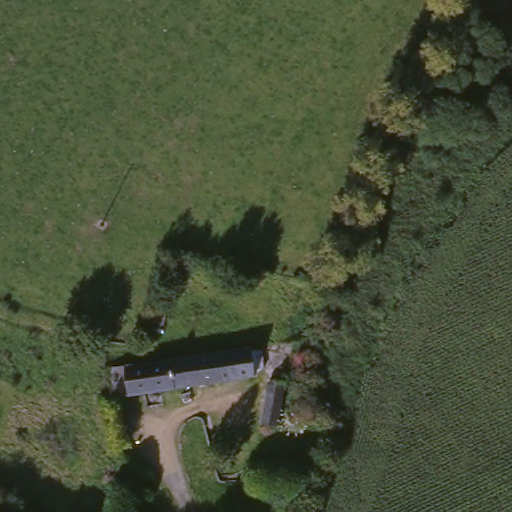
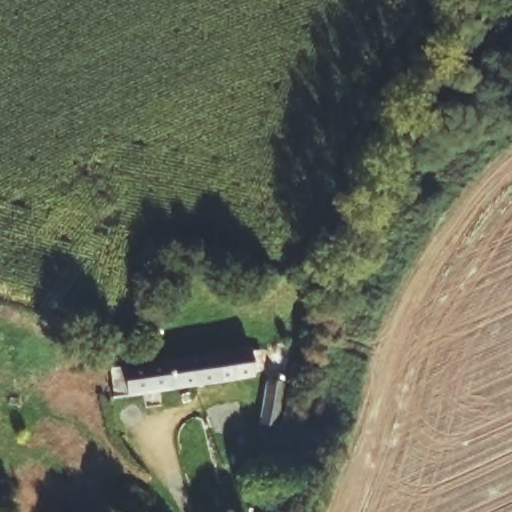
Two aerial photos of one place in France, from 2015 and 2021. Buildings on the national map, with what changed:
unchanged [(150,323),(161,267),(174,270),(162,325),(150,323)]
unchanged [(116,397),(112,369),(251,348),(251,352),(260,351),(263,371),(255,375),(255,376),(116,397)]
unchanged [(260,425),(267,384),(269,380),(285,382),(277,427),(260,425)]

